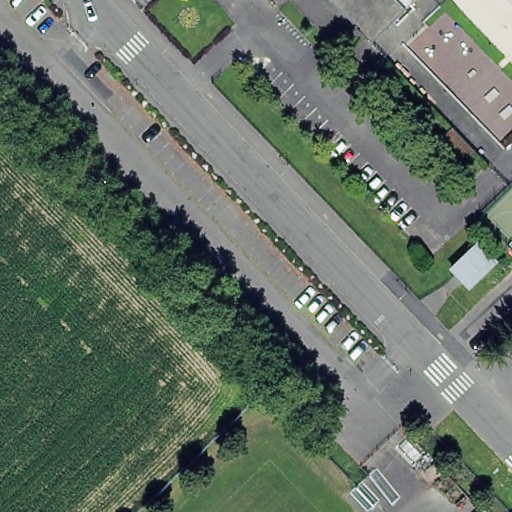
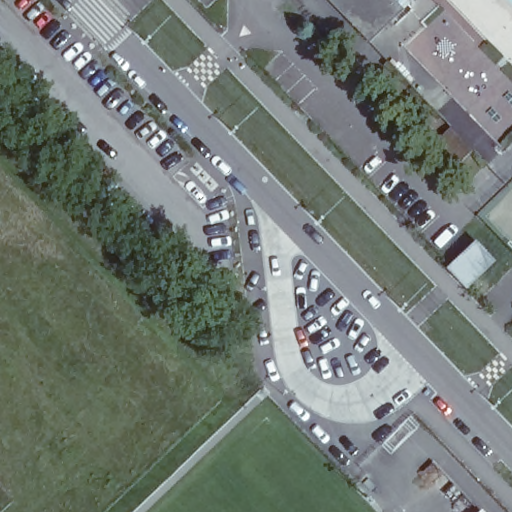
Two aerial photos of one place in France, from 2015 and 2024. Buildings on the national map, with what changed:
unchanged [(369,41),(329,0),(396,0),(404,8),(369,41)]
unchanged [(470,153),(454,175),(428,148),(451,127),(470,153)]
unchanged [(493,265),(467,290),(450,273),(476,248),(493,265)]
unchanged [(488,502),(496,512),(477,512),(488,502)]

